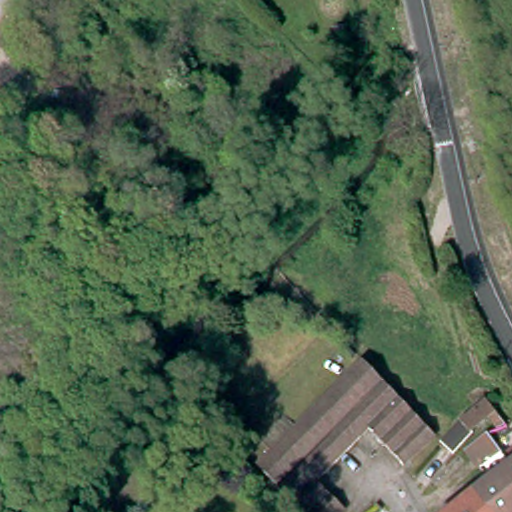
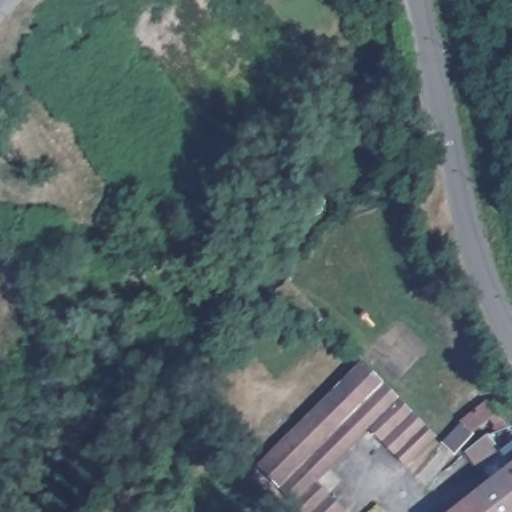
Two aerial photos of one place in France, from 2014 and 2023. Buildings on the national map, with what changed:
unchanged [(371,428),(316,480),(346,510),(344,512),(308,512),(261,465),(364,363),(435,437),(407,464),(371,428)]
unchanged [(464,424),(488,405),(507,428),(499,432),(489,419),(473,433),(474,435),(455,457),(442,445),(463,423),(464,424)]
unchanged [(456,512),(501,475),(477,446),(488,436),(489,439),(512,467),(512,512),(456,512)]

